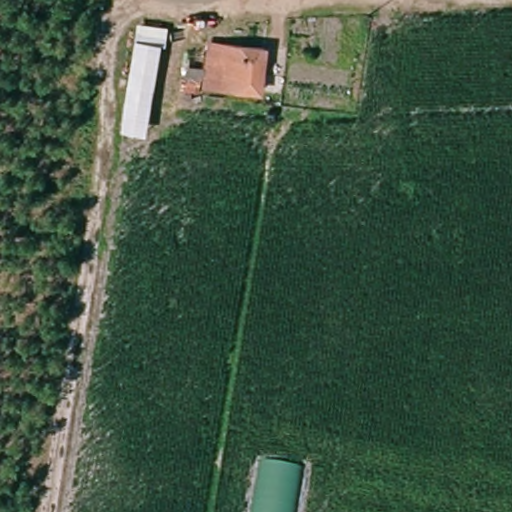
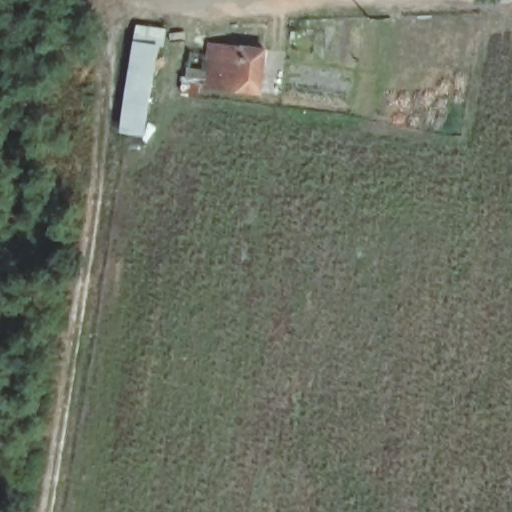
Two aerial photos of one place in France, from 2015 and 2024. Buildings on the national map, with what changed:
unchanged [(118,135),(136,42),(164,46),(148,140),(118,135)]
unchanged [(266,50),(265,90),(210,86),(210,45),(266,50)]
demolished [(294,512),(250,512),(258,465),(300,471),(294,512)]

